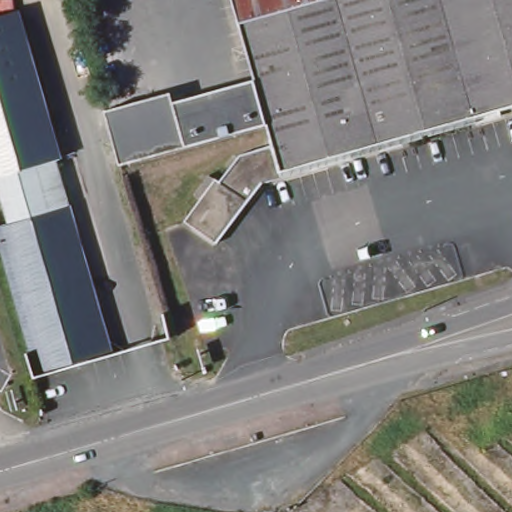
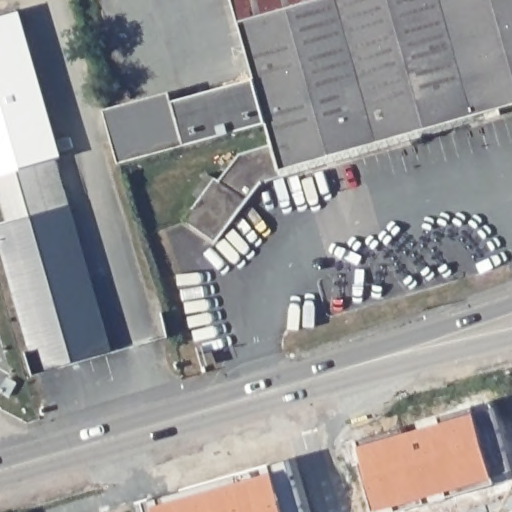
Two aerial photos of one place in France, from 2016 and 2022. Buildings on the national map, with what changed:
unchanged [(322,167),(266,183),(222,243),(190,220),(208,198),(201,193),(215,173),(226,181),(246,154),(278,145),(273,126),(192,148),(129,168),(112,112),(176,93),(179,102),(259,79),(237,0),(512,0),(512,106),(505,108),(507,116),(481,123),(386,149),(353,158),(322,167)]
unchanged [(25,9),(68,156),(0,177),(0,17),(25,9)]
unchanged [(68,156),(77,204),(4,225),(0,211),(0,177),(68,156)]
unchanged [(77,204),(118,348),(45,370),(4,225),(77,204)]
new [(512,469),(512,477),(392,512),(375,512),(362,461),(357,463),(350,440),(491,400),(512,469)]
new [(300,512),(144,512),(141,502),(285,460),(300,512)]

